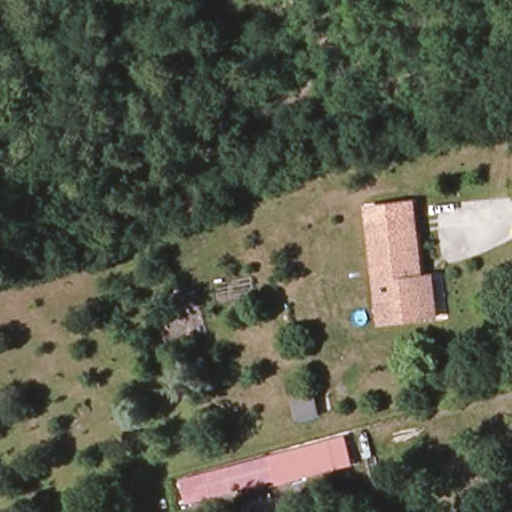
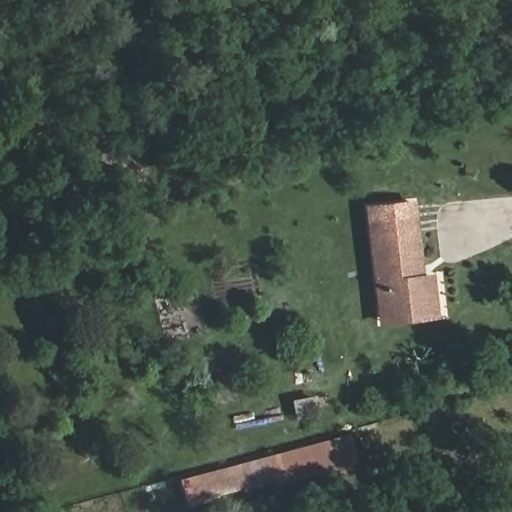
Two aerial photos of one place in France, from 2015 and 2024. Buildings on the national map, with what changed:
unchanged [(375,280),(371,210),(414,207),(421,267),(422,280),(434,278),(438,318),(428,319),(388,322),(378,322),(375,280)]
unchanged [(345,435),(353,465),(187,505),(182,480),(345,435)]

